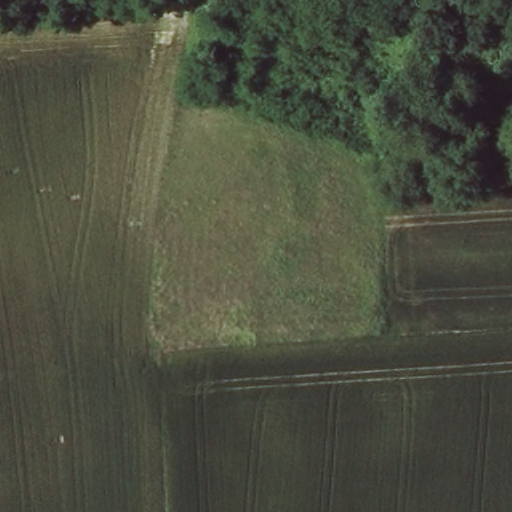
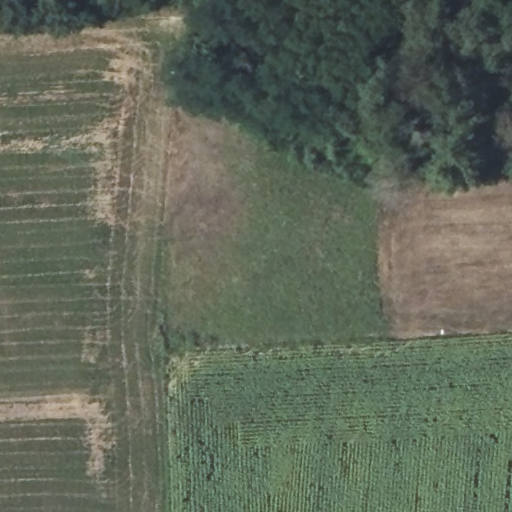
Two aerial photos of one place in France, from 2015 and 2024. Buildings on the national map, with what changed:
[]

